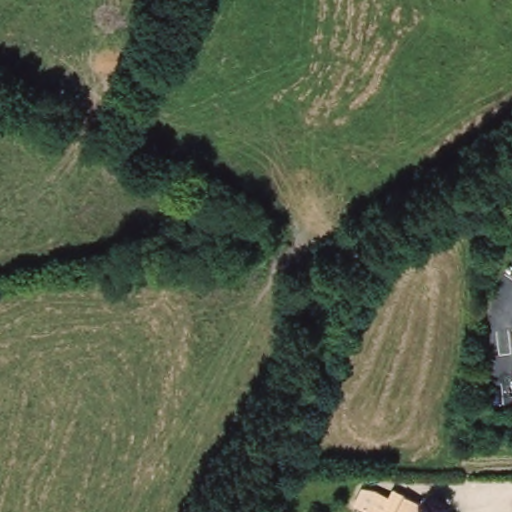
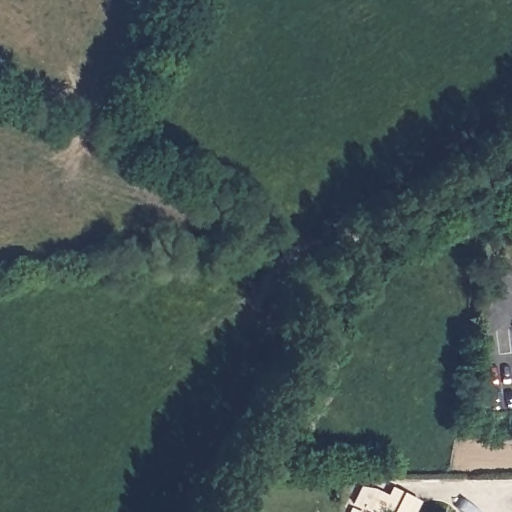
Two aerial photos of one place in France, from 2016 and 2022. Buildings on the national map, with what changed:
unchanged [(369,512),(352,502),(360,486),(374,487),(388,493),(393,486),(420,500),(415,512),(369,512)]

